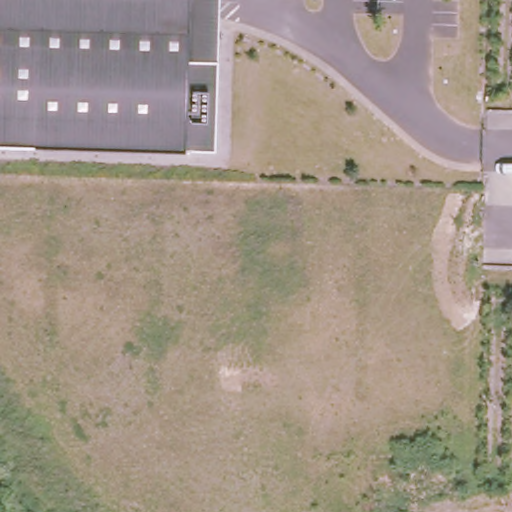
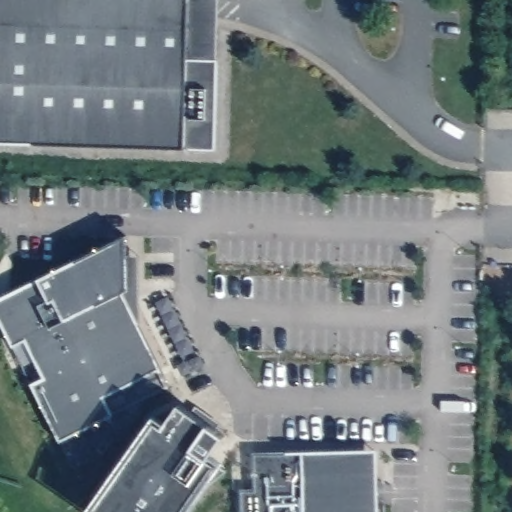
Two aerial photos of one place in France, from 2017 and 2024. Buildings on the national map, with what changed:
unchanged [(213,152),(183,148),(35,145),(0,142),(0,0),(218,0),(213,152)]
new [(139,253),(140,326),(160,368),(105,396),(113,414),(60,440),(30,383),(43,376),(25,338),(12,345),(0,319),(0,297),(127,234),(127,254),(139,253)]
new [(169,386),(113,414),(105,396),(160,368),(169,386)]
new [(208,458),(227,469),(190,502),(182,512),(100,512),(95,509),(156,421),(164,426),(180,403),(225,435),(208,458)]
new [(378,512),(360,512),(358,450),(377,449),(378,512)]
new [(360,512),(241,512),(240,489),(253,488),(252,452),(358,450),(360,512)]

